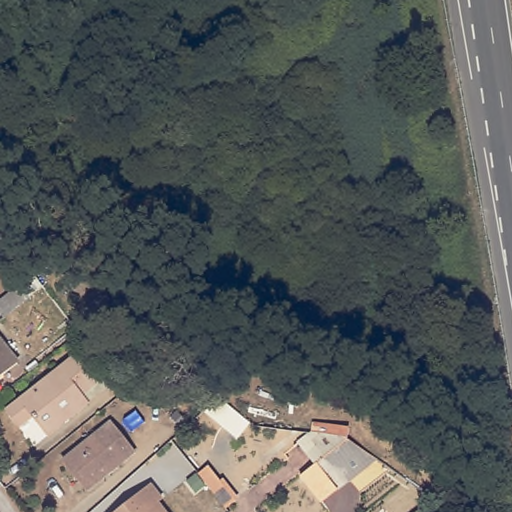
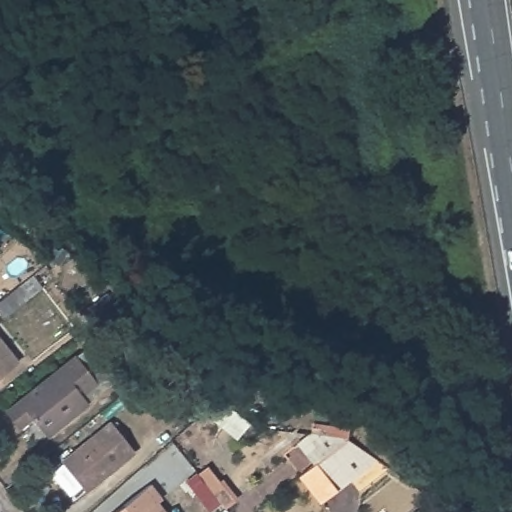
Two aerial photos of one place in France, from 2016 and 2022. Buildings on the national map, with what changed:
unchanged [(4,316),(0,312),(0,298),(31,272),(42,285),(4,316)]
unchanged [(83,310),(99,297),(110,307),(91,321),(83,310)]
unchanged [(0,341),(17,363),(0,376),(0,341)]
unchanged [(47,433),(33,414),(19,425),(6,409),(76,353),(89,343),(115,376),(87,399),(88,401),(47,433)]
unchanged [(260,415),(240,440),(205,412),(221,391),(260,415)]
unchanged [(86,490),(62,460),(110,422),(134,452),(86,490)]
unchanged [(376,457),(320,502),(298,474),(345,436),(376,457)]
unchanged [(149,484),(161,499),(157,502),(165,512),(115,512),(149,484)]

